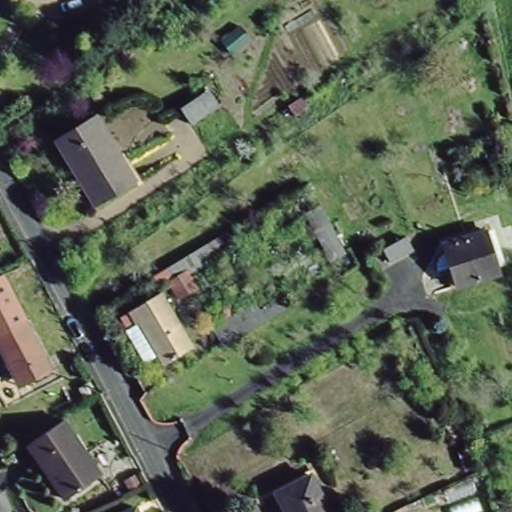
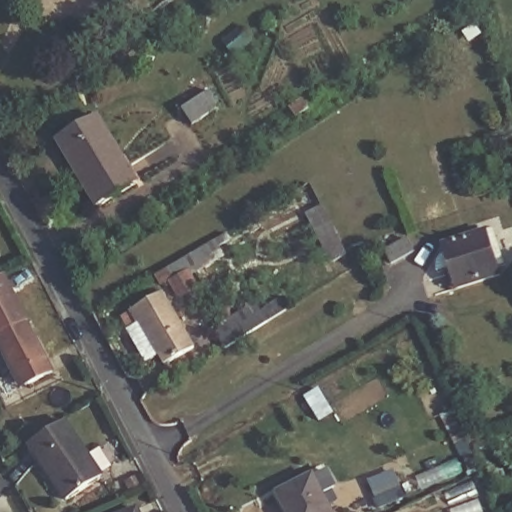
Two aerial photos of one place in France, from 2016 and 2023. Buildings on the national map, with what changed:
unchanged [(16,101),(0,110),(0,82),(5,79),(16,101)]
unchanged [(173,138),(163,120),(189,104),(189,103),(201,121),(173,138)]
unchanged [(95,207),(54,140),(95,116),(135,183),(95,207)]
unchanged [(334,266),(310,220),(324,211),(349,258),(334,266)]
unchanged [(402,231),(408,245),(384,254),(379,240),(402,231)]
unchanged [(510,263),(504,265),(508,274),(464,289),(454,260),(441,265),(440,258),(441,254),(444,249),(456,244),(493,232),(494,234),(499,233),(510,263)]
unchanged [(191,274),(189,269),(174,277),(169,269),(218,239),(226,254),(191,274)]
unchanged [(7,273),(28,315),(0,329),(0,276),(7,273)]
unchanged [(159,294),(189,347),(160,364),(159,362),(148,368),(130,336),(140,330),(136,324),(133,326),(125,313),(159,294)]
unchanged [(226,349),(215,332),(257,304),(268,322),(226,349)]
unchanged [(53,367),(19,384),(0,345),(0,329),(28,315),(53,367)]
unchanged [(29,448),(64,424),(101,474),(104,478),(70,503),(63,493),(29,448)]
unchanged [(330,512),(286,512),(276,494),(312,476),(330,512)]
unchanged [(139,512),(132,512),(138,509),(139,512)]

